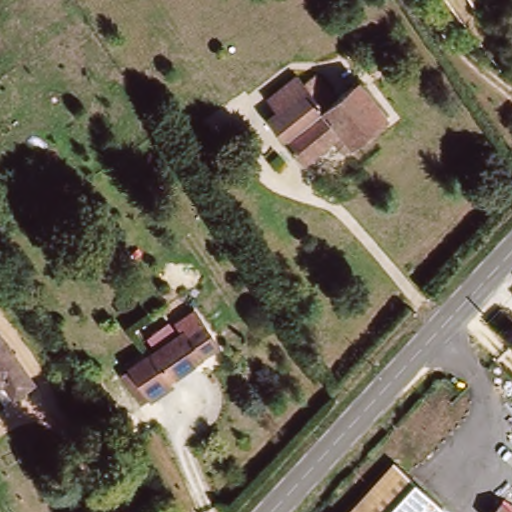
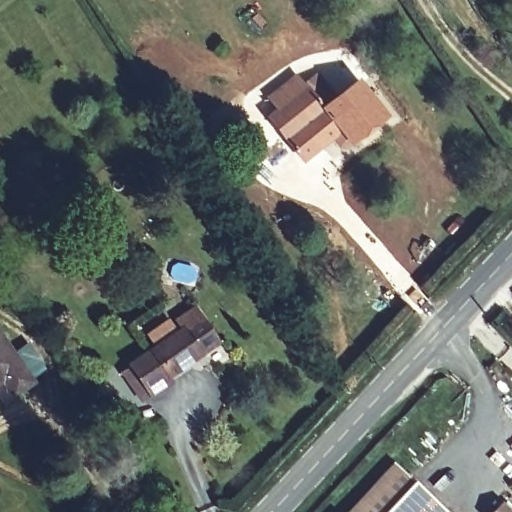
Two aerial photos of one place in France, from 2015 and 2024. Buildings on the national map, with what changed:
unchanged [(293,80),(297,85),(320,72),(336,97),(360,81),(386,120),(340,151),(333,140),(300,164),(268,117),(275,111),(267,98),(293,80)]
unchanged [(175,335),(168,325),(185,313),(210,350),(183,367),(164,379),(170,389),(150,402),(128,370),(175,335)]
unchanged [(0,382),(0,336),(1,335),(32,384),(10,398),(0,382)]
unchanged [(445,505),(438,512),(353,512),(398,461),(445,505)]
unchanged [(512,509),(512,512),(495,512),(505,502),(512,509)]

